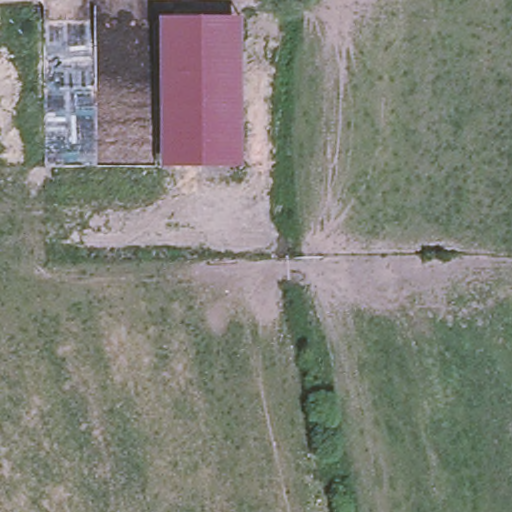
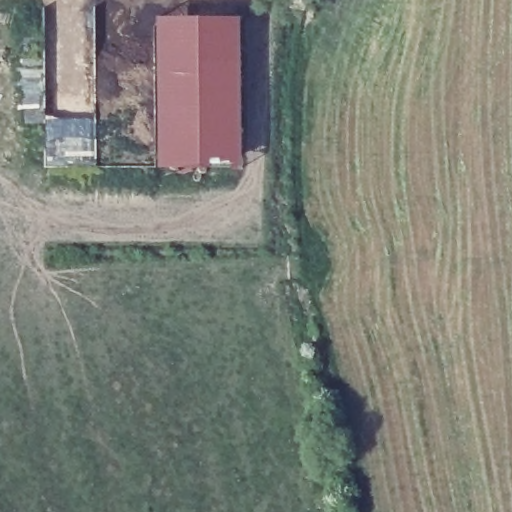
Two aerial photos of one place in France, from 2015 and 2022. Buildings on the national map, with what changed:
unchanged [(158,17),(240,16),(241,165),(160,168),(158,17)]

